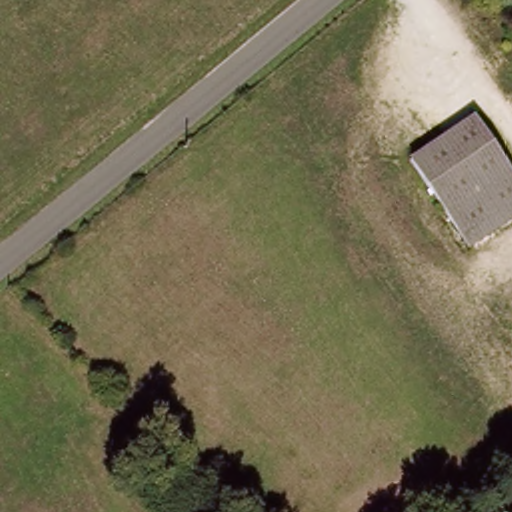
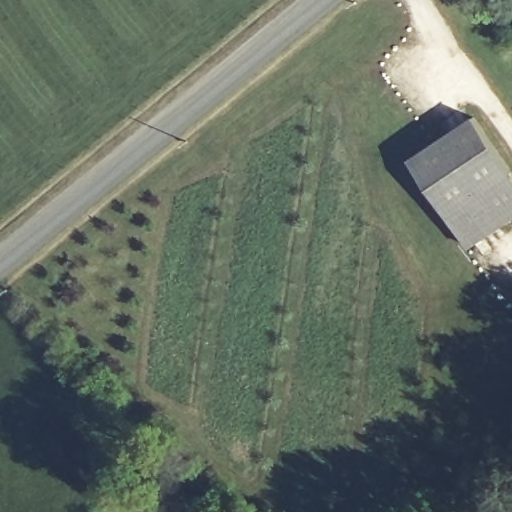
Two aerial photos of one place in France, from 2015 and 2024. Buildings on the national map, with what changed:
unchanged [(410,158),(474,115),(508,166),(445,209),(410,158)]
unchanged [(508,166),(512,172),(512,214),(468,244),(445,209),(508,166)]

